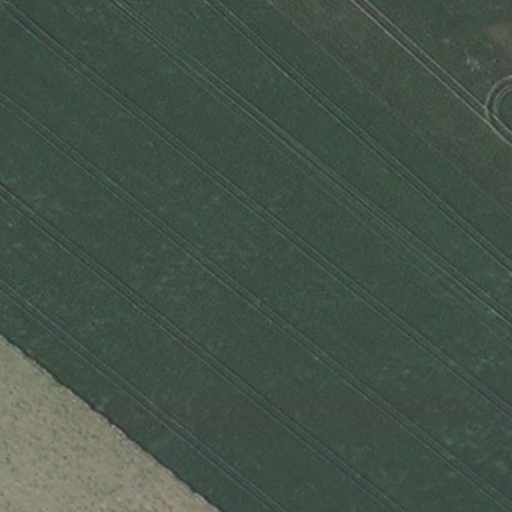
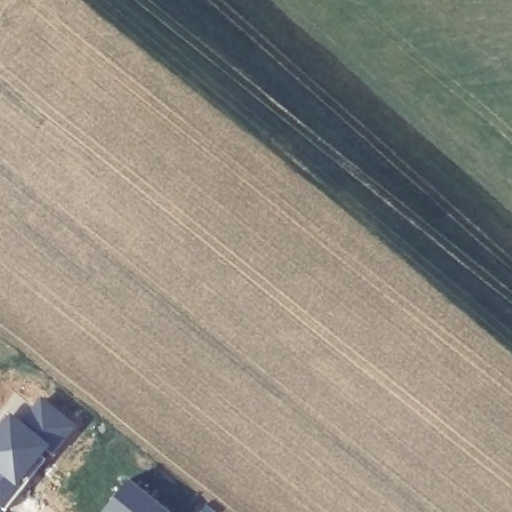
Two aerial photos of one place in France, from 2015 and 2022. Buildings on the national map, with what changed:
new [(22,415),(32,424),(48,403),(80,432),(10,512),(0,512),(0,439),(22,415)]
new [(172,512),(108,512),(135,481),(172,512)]

